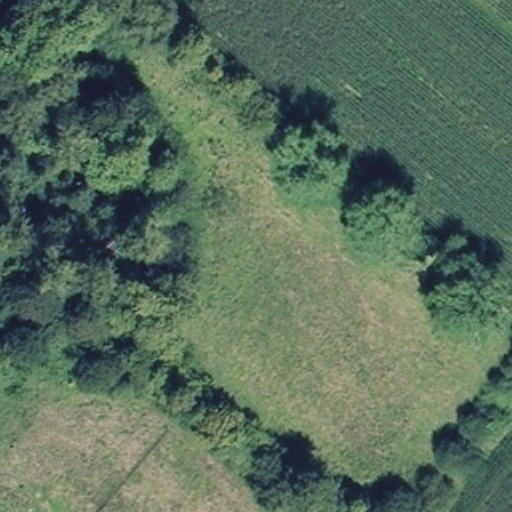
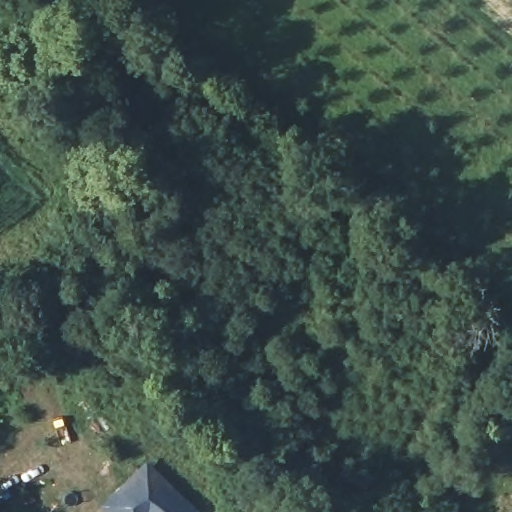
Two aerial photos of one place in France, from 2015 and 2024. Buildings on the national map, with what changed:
new [(147,456),(201,510),(199,512),(105,512),(98,505),(147,456)]

